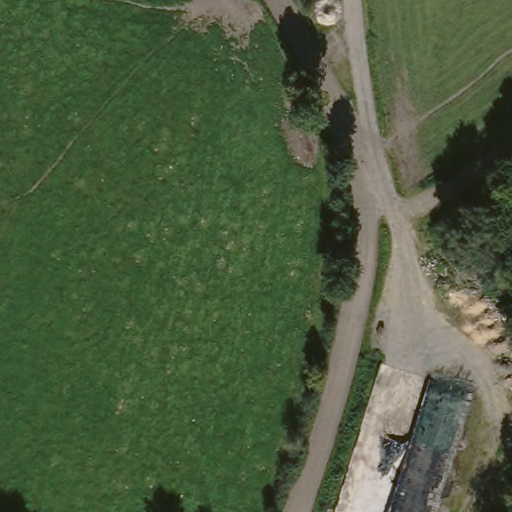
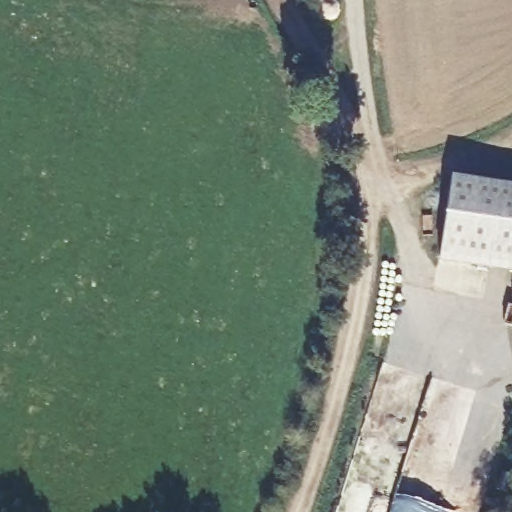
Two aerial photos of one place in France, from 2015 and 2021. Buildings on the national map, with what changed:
new [(451,180),(512,190),(512,276),(438,265),(451,180)]

